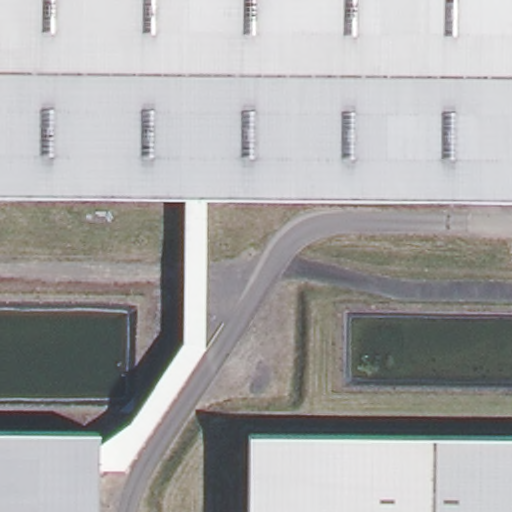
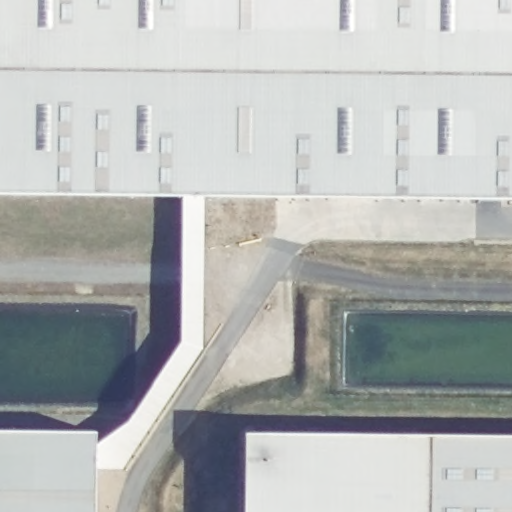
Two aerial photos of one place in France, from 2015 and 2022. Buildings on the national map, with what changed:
unchanged [(512,200),(0,195),(0,0),(512,0),(512,200)]
unchanged [(0,512),(0,432),(95,434),(94,512),(0,512)]
unchanged [(512,512),(243,512),(244,435),(512,437),(512,512)]

